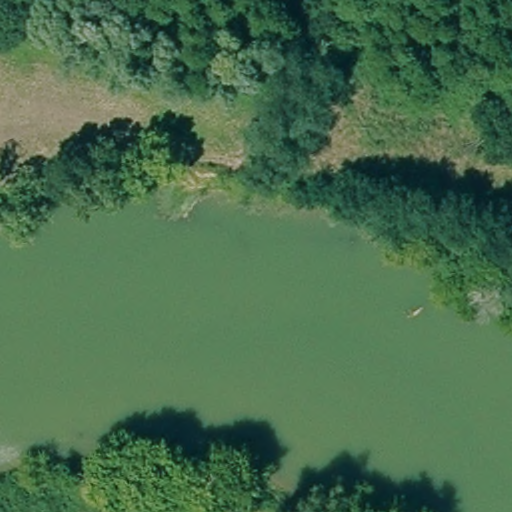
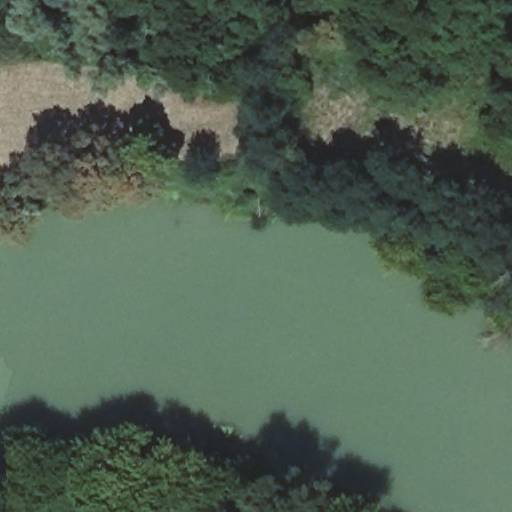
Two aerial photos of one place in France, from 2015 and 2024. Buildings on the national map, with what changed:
[]

